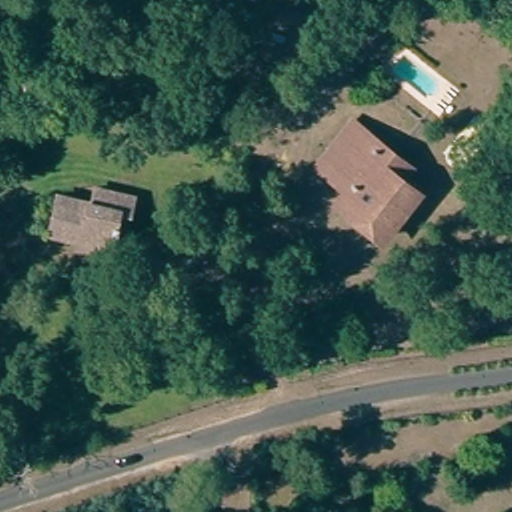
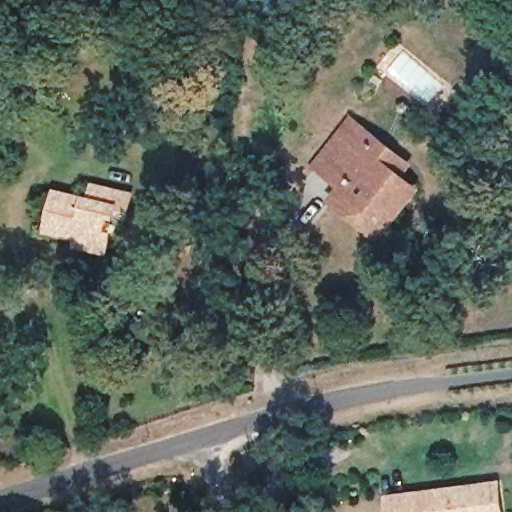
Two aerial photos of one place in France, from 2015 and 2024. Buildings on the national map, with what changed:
unchanged [(68,67),(63,88),(33,81),(39,55),(69,62),(68,67)]
unchanged [(399,182),(389,192),(407,207),(376,246),(359,232),(365,222),(338,200),(344,190),(334,182),(317,169),(344,136),(360,149),(373,160),(399,182)]
unchanged [(47,229),(59,192),(93,202),(98,187),(116,194),(135,200),(130,215),(119,212),(114,227),(117,227),(114,236),(111,235),(108,245),(105,255),(75,246),(77,239),(47,229)]
unchanged [(208,252),(217,258),(212,267),(203,262),(208,252)]
new [(386,497),(503,481),(506,512),(388,512),(386,497)]

